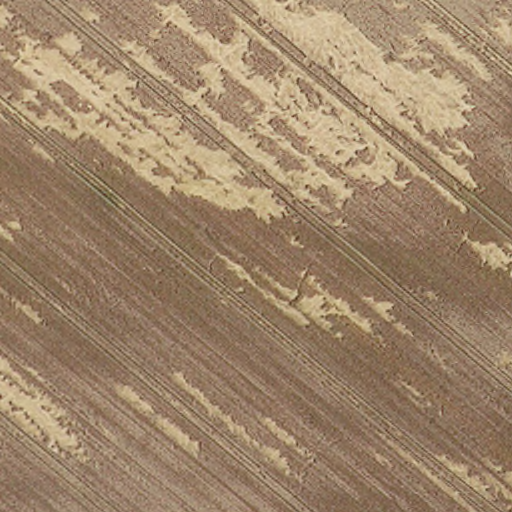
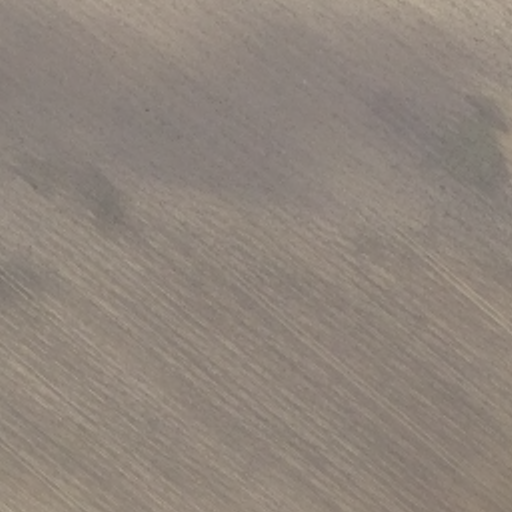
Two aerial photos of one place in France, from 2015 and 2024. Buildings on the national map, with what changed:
[]

